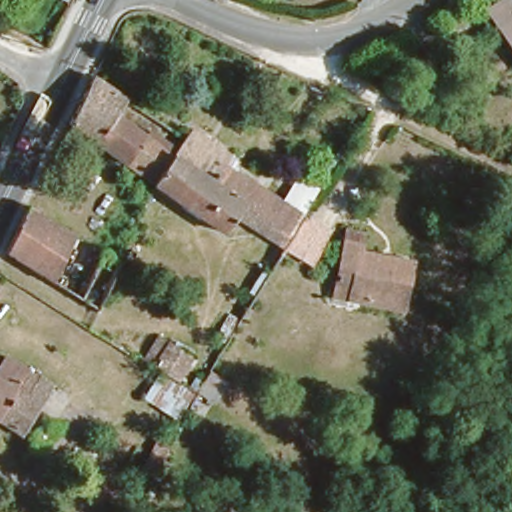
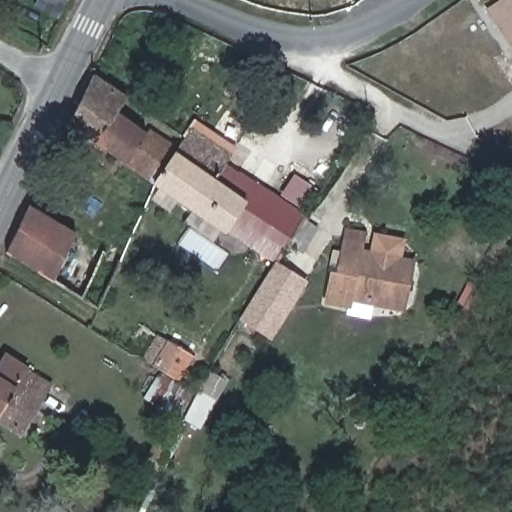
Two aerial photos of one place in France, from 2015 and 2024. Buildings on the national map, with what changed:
unchanged [(501,0),(512,0),(512,41),(490,7),(501,0)]
unchanged [(92,140),(65,120),(89,71),(124,94),(113,110),(92,140)]
unchanged [(152,180),(92,140),(113,110),(172,149),(152,180)]
unchanged [(187,125),(225,151),(220,160),(240,173),(248,179),(254,183),(233,215),(223,230),(152,180),(172,149),(182,134),(187,125)]
unchanged [(280,200),(258,232),(233,215),(254,183),(280,200)]
unchanged [(280,247),(258,232),(280,200),(302,216),(280,247)]
unchanged [(53,278),(50,284),(35,275),(2,255),(13,231),(24,209),(47,222),(72,238),(53,278)]
unchanged [(302,216),(330,233),(311,267),(280,247),(302,216)]
unchanged [(336,267),(355,222),(374,230),(366,249),(415,270),(397,315),(345,293),(328,286),(336,267)]
new [(306,283),(270,334),(241,314),(277,263),(306,283)]
unchanged [(147,362),(163,336),(187,351),(171,377),(185,387),(194,372),(204,380),(207,372),(224,382),(212,404),(196,393),(181,422),(139,395),(155,367),(147,362)]
unchanged [(8,357),(26,369),(51,386),(42,401),(22,432),(0,417),(0,368),(8,357)]
unchanged [(165,451),(160,461),(146,487),(135,480),(154,445),(165,451)]

